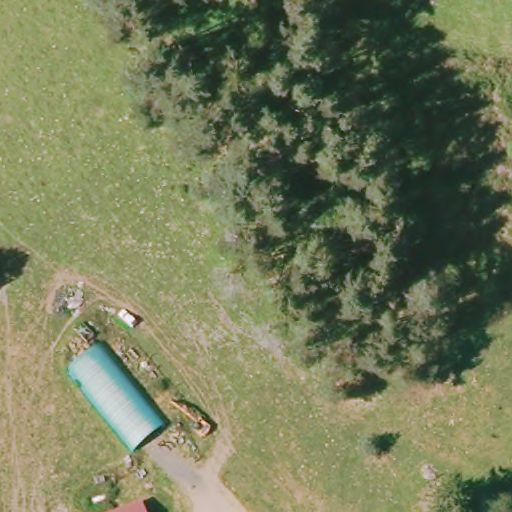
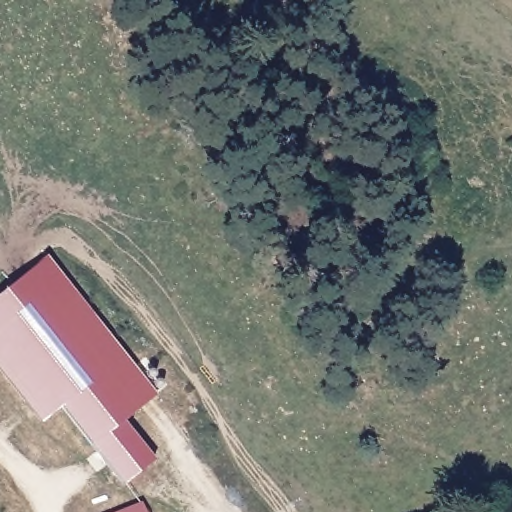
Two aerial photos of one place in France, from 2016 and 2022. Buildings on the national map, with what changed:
new [(122,421),(152,459),(121,483),(61,405),(40,422),(0,372),(0,293),(46,257),(154,393),(122,421)]
demolished [(136,457),(71,375),(106,349),(171,430),(136,457)]
unchanged [(141,510),(142,512),(135,512),(141,510)]

